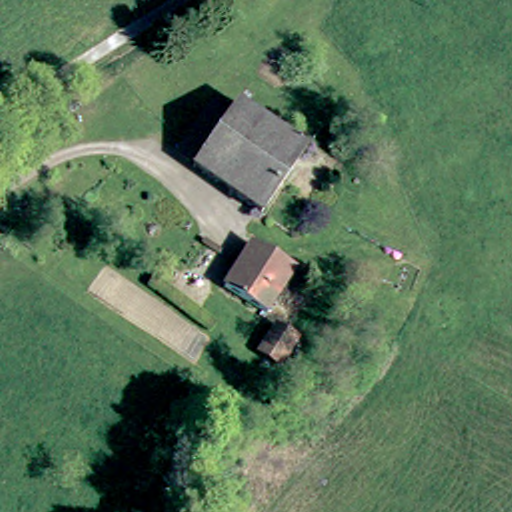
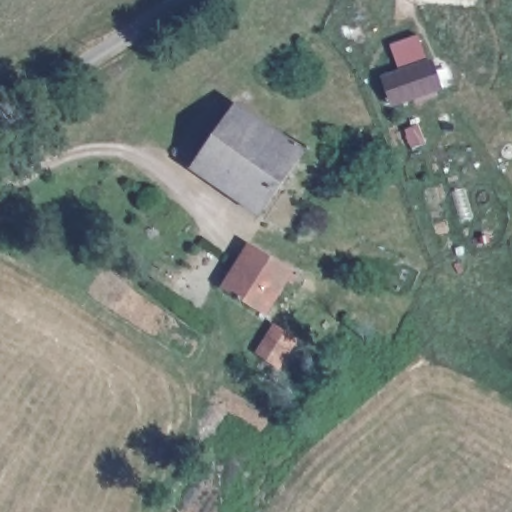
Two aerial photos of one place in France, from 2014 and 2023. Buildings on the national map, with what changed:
new [(418,35),(427,59),(432,57),(443,89),(392,108),(380,76),(400,69),(391,46),(418,35)]
unchanged [(233,120),(244,107),(307,153),(263,220),(195,170),(197,167),(180,156),(217,109),(233,120)]
unchanged [(360,160),(335,151),(343,132),(368,139),(360,160)]
unchanged [(259,245),(300,270),(275,312),(233,288),(259,245)]
unchanged [(267,370),(257,359),(262,355),(256,348),(282,324),(296,339),(267,370)]

